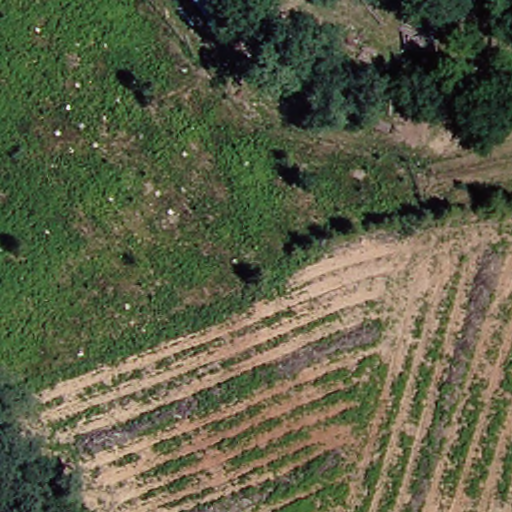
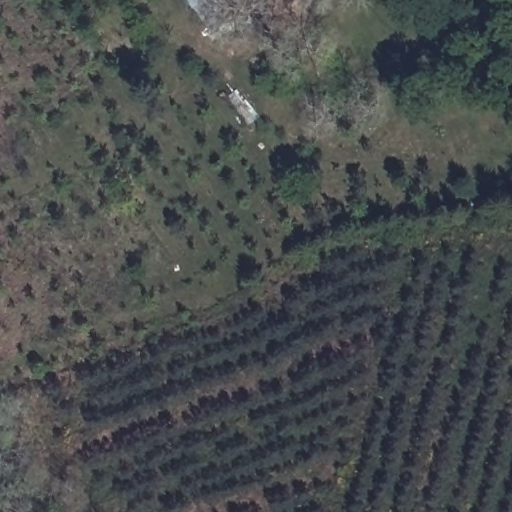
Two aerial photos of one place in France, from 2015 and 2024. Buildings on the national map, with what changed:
unchanged [(204,21),(193,0),(242,0),(204,21)]

